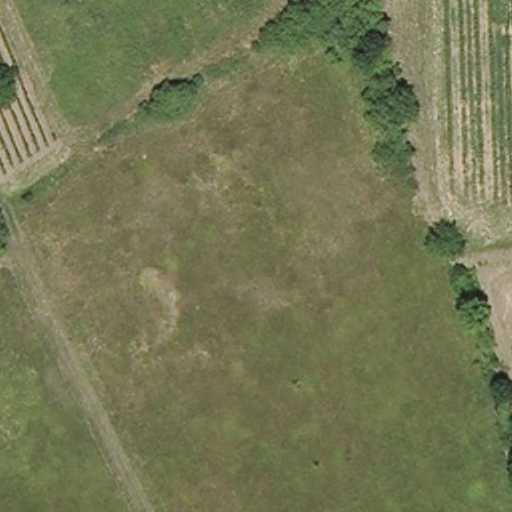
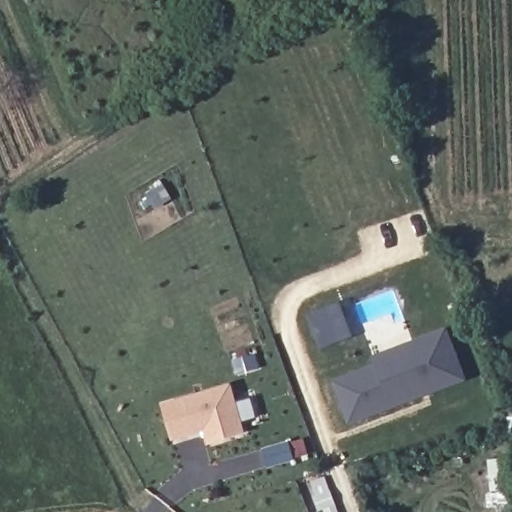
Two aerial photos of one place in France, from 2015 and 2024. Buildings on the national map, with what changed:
new [(373,367),(370,357),(443,329),(462,380),(346,426),(331,382),(373,367)]
new [(227,384),(244,433),(209,443),(204,434),(169,443),(162,404),(227,384)]

